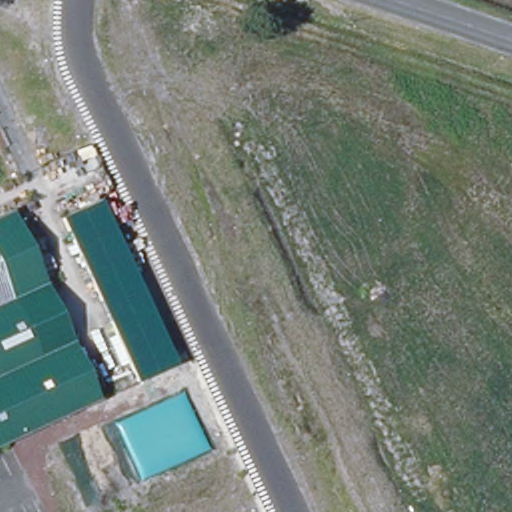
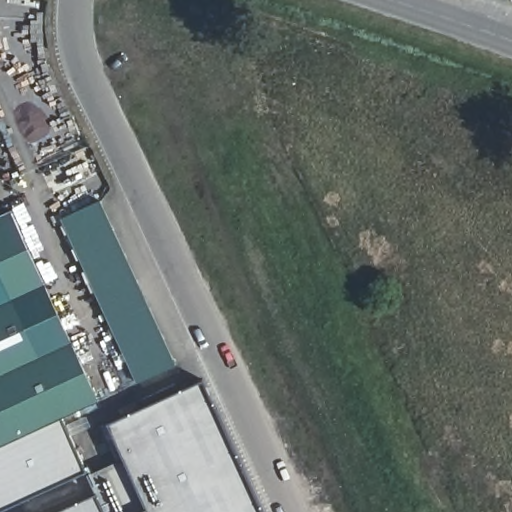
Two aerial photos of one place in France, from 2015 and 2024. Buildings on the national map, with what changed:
unchanged [(140,383),(65,215),(101,197),(176,367),(140,383)]
unchanged [(98,399),(60,416),(0,445),(0,214),(11,209),(98,399)]
new [(109,423),(203,380),(263,512),(55,512),(95,493),(88,474),(125,458),(109,423)]
new [(87,471),(0,511),(0,445),(60,416),(87,471)]

